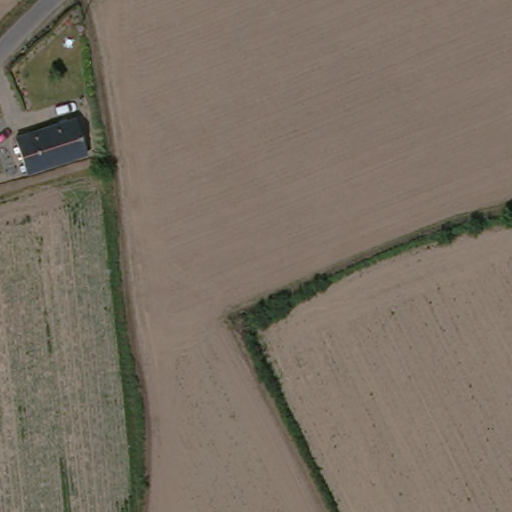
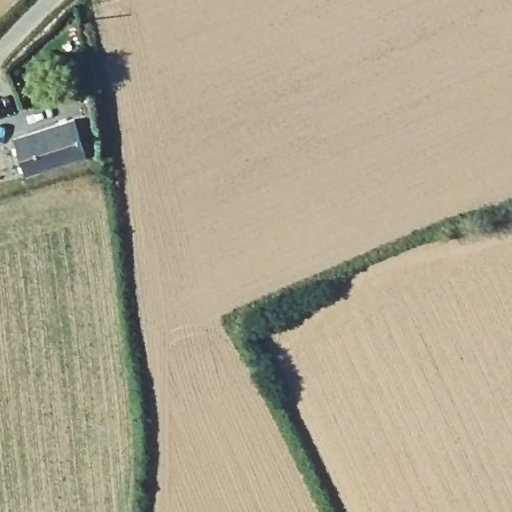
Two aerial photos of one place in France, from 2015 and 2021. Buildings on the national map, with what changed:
unchanged [(15,140),(72,115),(87,150),(31,175),(15,140)]

